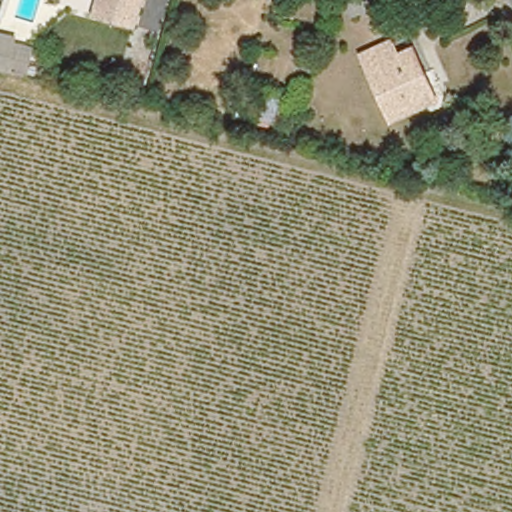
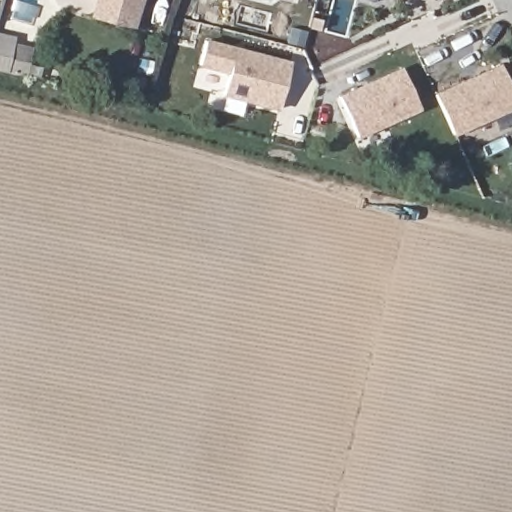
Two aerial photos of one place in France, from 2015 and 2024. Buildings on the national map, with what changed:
unchanged [(92,21),(98,0),(151,0),(143,36),(92,21)]
demolished [(333,21),(322,0),(352,0),(356,8),(333,21)]
new [(370,0),(375,0),(375,1),(370,0)]
new [(245,102),(241,115),(220,110),(230,74),(200,66),(207,39),(292,61),(279,111),(245,102)]
demolished [(396,129),(358,63),(387,45),(397,63),(411,54),(424,76),(416,81),(431,106),(396,129)]
new [(501,63),(512,88),(512,110),(455,136),(435,93),(501,63)]
new [(365,136),(363,131),(357,134),(340,95),(401,67),(421,111),(365,136)]

